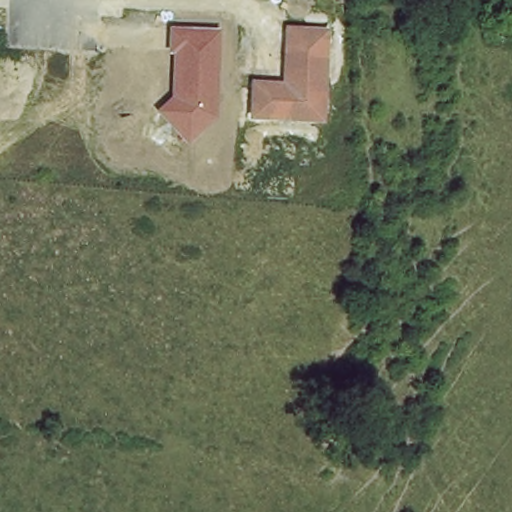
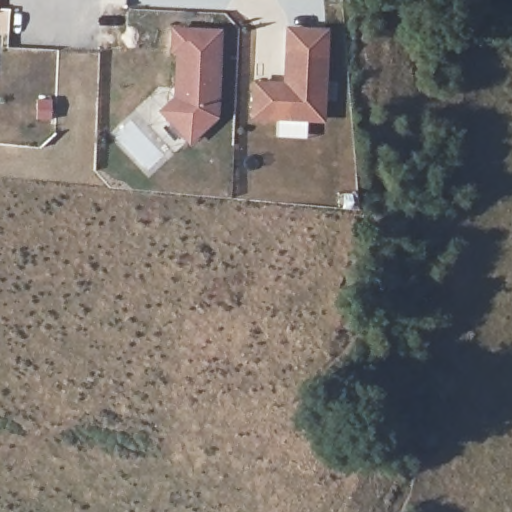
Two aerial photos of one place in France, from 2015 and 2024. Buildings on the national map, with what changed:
unchanged [(157,111),(173,96),(175,54),(169,53),(170,27),(220,30),(218,117),(188,143),(157,111)]
unchanged [(250,119),(252,80),(282,81),(285,27),(327,29),(322,121),(250,119)]

